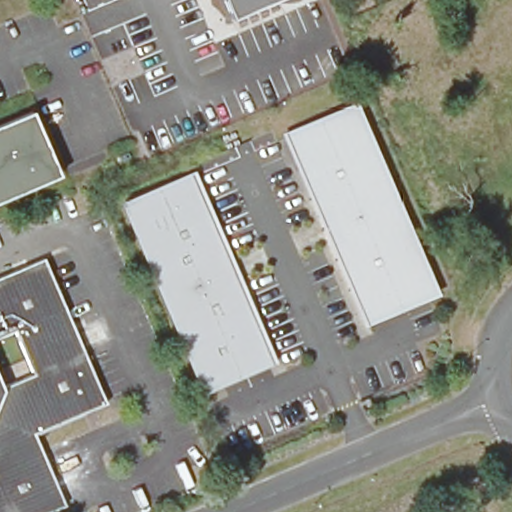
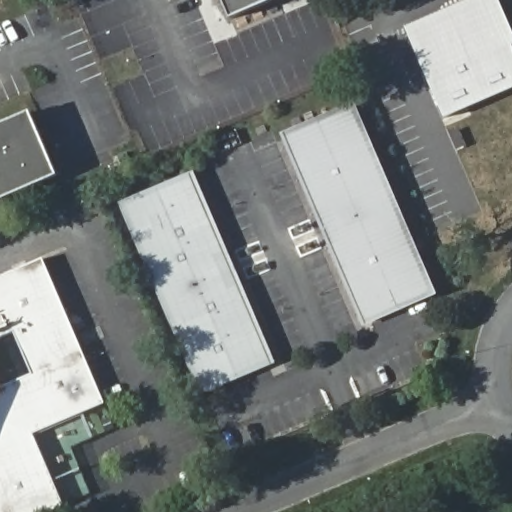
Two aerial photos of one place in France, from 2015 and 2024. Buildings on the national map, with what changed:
unchanged [(236,14),(230,0),(268,0),(236,14)]
new [(512,45),(512,87),(443,116),(406,30),(475,0),(493,0),(512,45)]
unchanged [(434,295),(363,325),(279,134),(350,102),(434,295)]
unchanged [(50,184),(0,205),(0,127),(22,117),(50,184)]
unchanged [(270,361),(197,393),(115,200),(189,167),(270,361)]
unchanged [(88,401),(21,432),(51,503),(32,512),(0,512),(0,382),(23,371),(4,332),(0,335),(0,263),(25,251),(88,401)]

